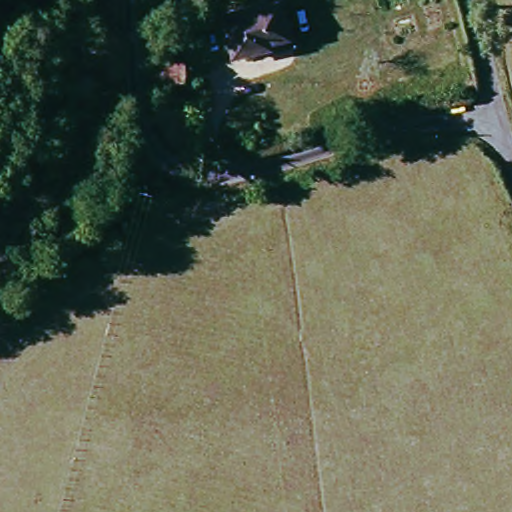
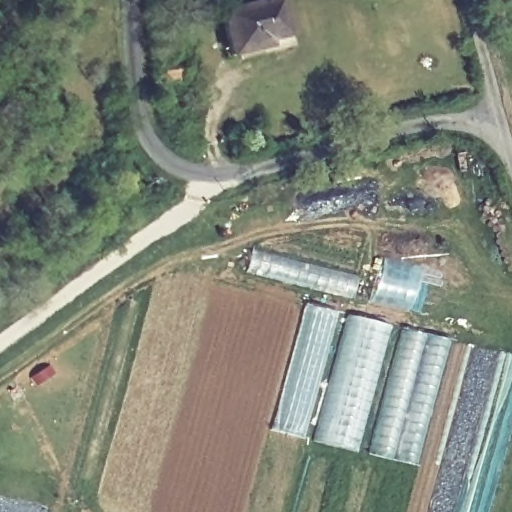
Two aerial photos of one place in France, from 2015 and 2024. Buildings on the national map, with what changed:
unchanged [(294,40),(240,50),(233,9),(287,0),(294,40)]
unchanged [(160,78),(183,79),(184,97),(162,96),(160,78)]
new [(252,246),(360,276),(354,298),(317,291),(244,273),(252,246)]
new [(382,256),(425,267),(417,301),(420,302),(420,303),(422,304),(420,314),(369,302),(382,256)]
new [(312,439),(318,413),(332,367),(346,314),(397,325),(394,343),(391,355),(387,354),(358,454),(312,441),(312,439)]
new [(391,355),(394,343),(399,326),(452,338),(417,468),(367,455),(391,355)]

